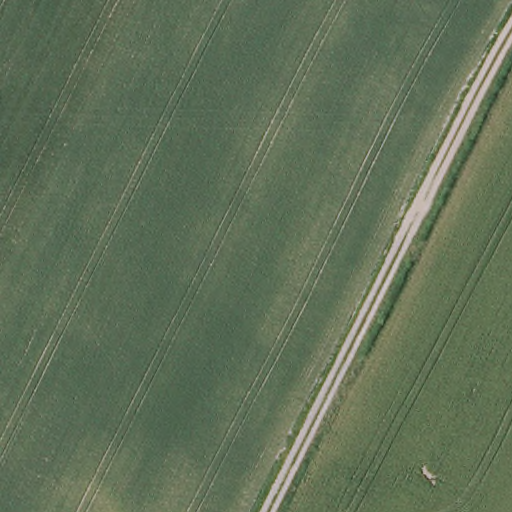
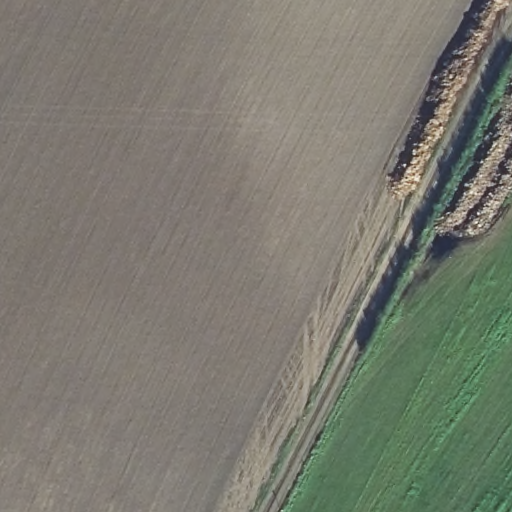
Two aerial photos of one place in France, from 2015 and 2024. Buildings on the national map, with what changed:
[]

